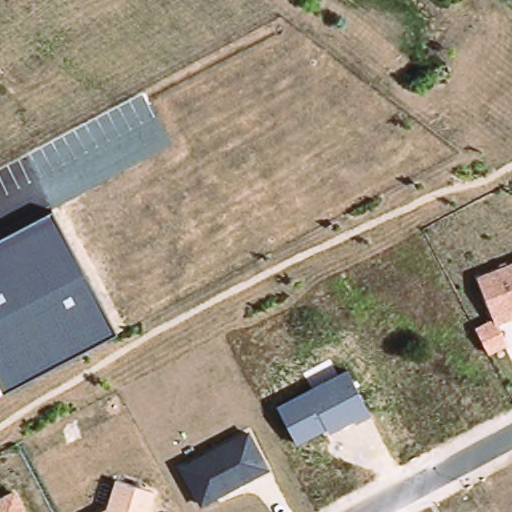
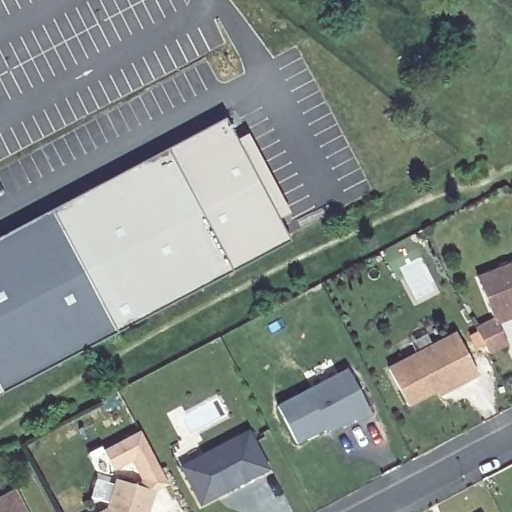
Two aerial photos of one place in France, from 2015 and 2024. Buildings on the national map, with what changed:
new [(177,171),(190,166),(232,245),(220,251),(232,273),(117,334),(51,210),(168,151),(177,171)]
unchanged [(1,395),(0,393),(0,237),(51,210),(117,334),(1,395)]
unchanged [(477,276),(512,264),(512,322),(497,327),(477,276)]
new [(456,333),(479,379),(439,399),(435,394),(409,408),(387,369),(456,333)]
unchanged [(370,413),(330,434),(327,430),(296,445),(275,406),(347,369),(370,413)]
unchanged [(272,469),(200,507),(179,466),(249,429),(272,469)]
unchanged [(157,492),(151,512),(102,512),(107,509),(117,479),(157,492)]
unchanged [(0,496),(15,488),(27,512),(0,512),(0,496)]

